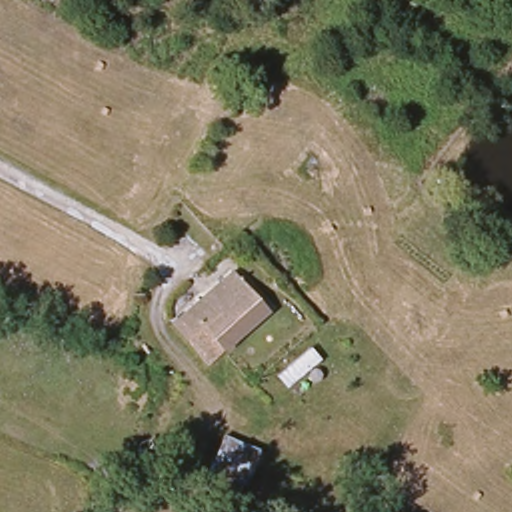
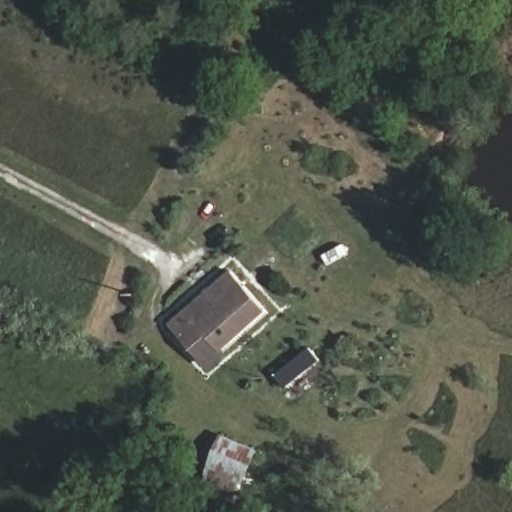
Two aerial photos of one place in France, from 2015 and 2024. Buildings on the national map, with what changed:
unchanged [(232,275),(267,313),(207,367),(173,330),(232,275)]
unchanged [(263,442),(239,496),(203,481),(224,428),(263,442)]

